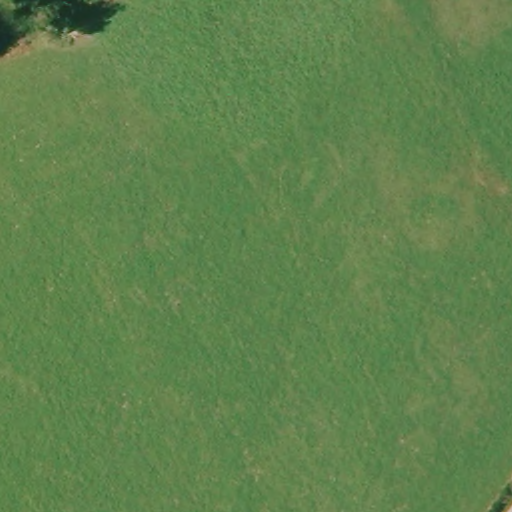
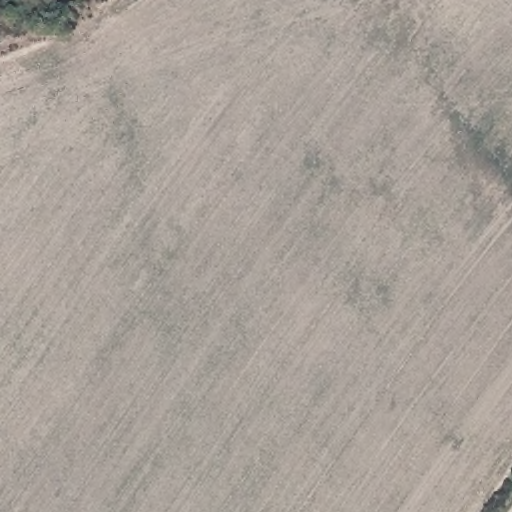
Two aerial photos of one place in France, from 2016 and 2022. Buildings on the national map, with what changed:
[]

